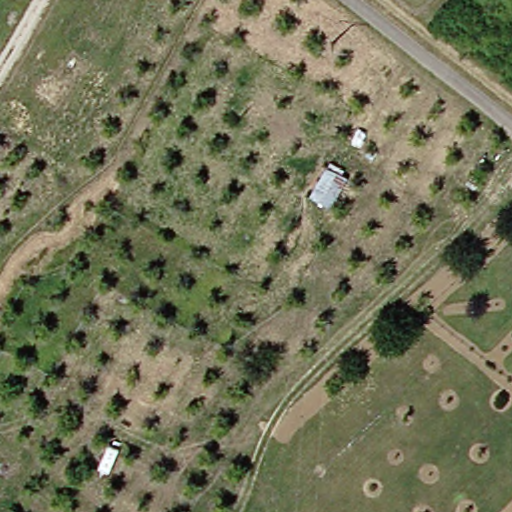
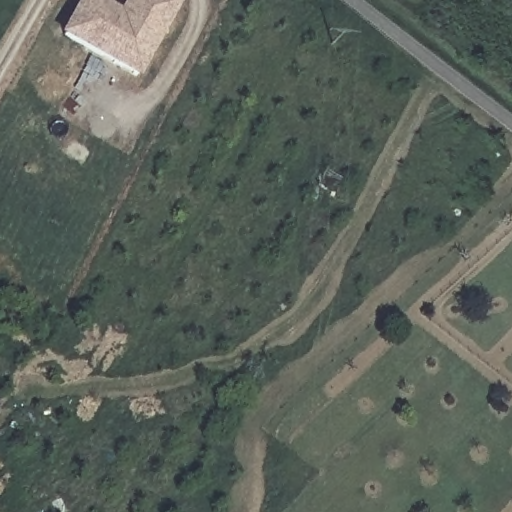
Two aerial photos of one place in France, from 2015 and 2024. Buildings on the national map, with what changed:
new [(95,0),(116,11),(122,0),(172,0),(133,71),(59,30),(75,0),(95,0)]

